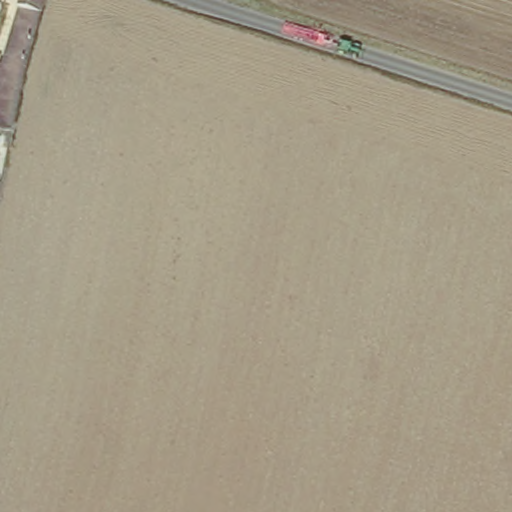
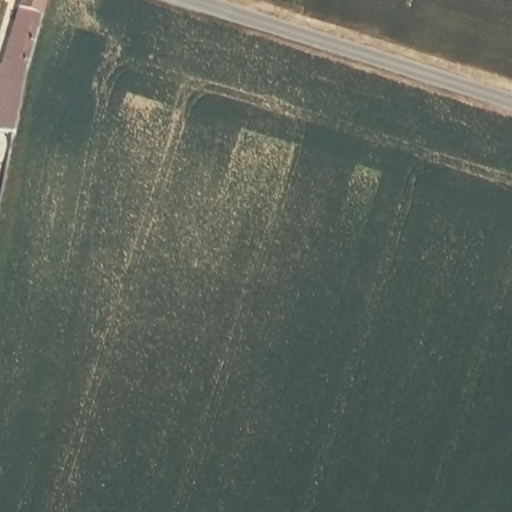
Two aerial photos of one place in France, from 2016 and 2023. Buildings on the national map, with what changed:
unchanged [(0,135),(0,59),(15,0),(41,0),(41,3),(20,84),(16,100),(9,129),(8,138),(0,135)]

